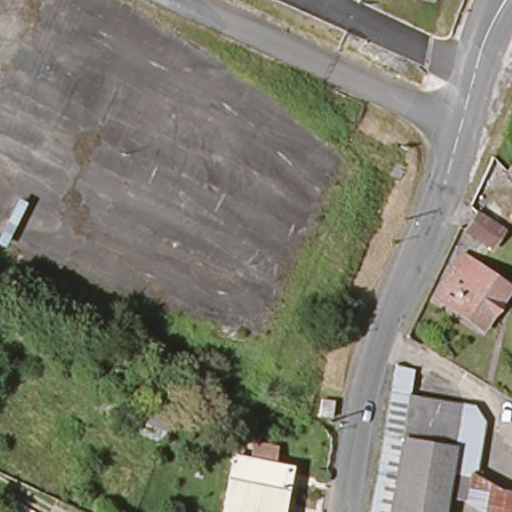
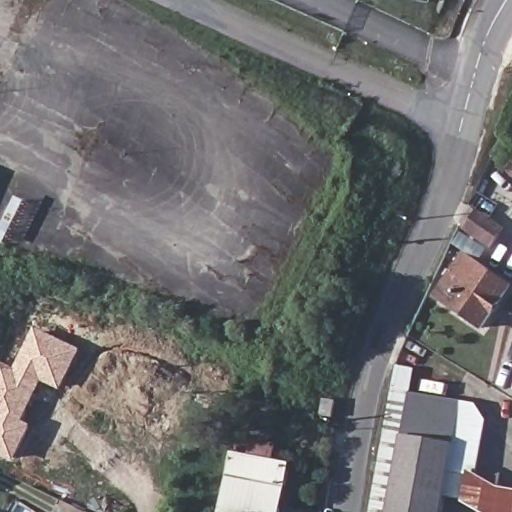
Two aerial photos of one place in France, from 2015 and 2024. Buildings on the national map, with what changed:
unchanged [(512,168),(512,181),(507,176),(512,168)]
unchanged [(465,236),(477,213),(510,232),(492,256),(465,236)]
unchanged [(466,256),(512,286),(512,293),(485,338),(432,305),(466,256)]
new [(61,391),(42,383),(23,421),(32,426),(14,463),(0,456),(0,362),(13,367),(34,327),(81,350),(61,391)]
unchanged [(482,473),(473,477),(473,501),(463,502),(449,502),(448,512),(376,512),(385,434),(393,397),(399,372),(417,376),(412,401),(477,415),(487,432),(482,473)]
unchanged [(143,436),(148,425),(156,402),(173,408),(163,431),(158,442),(143,436)]
unchanged [(270,493),(266,512),(213,512),(227,457),(283,470),(276,493),(270,493)]
unchanged [(473,477),(481,473),(502,492),(512,492),(512,512),(486,512),(473,501),(473,477)]

